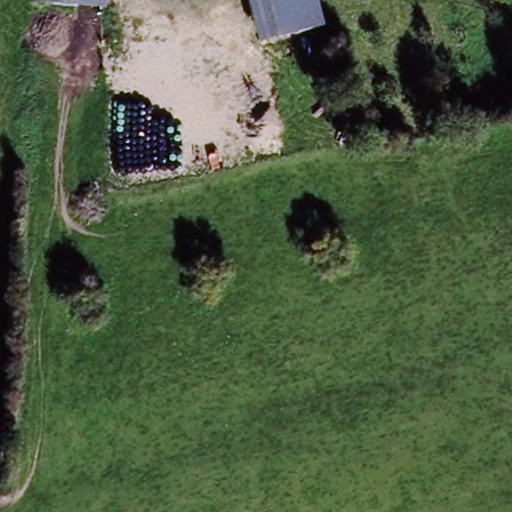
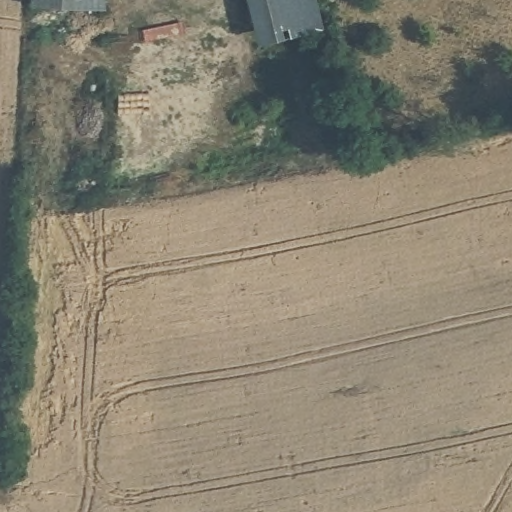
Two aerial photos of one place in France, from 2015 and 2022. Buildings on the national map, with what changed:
unchanged [(315,18),(259,36),(247,0),(310,0),(312,6),(315,18)]

